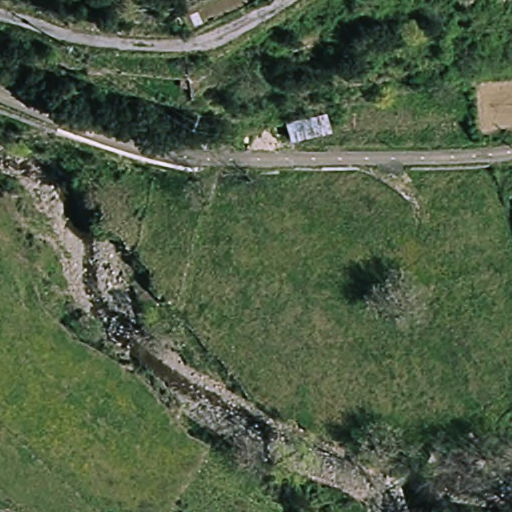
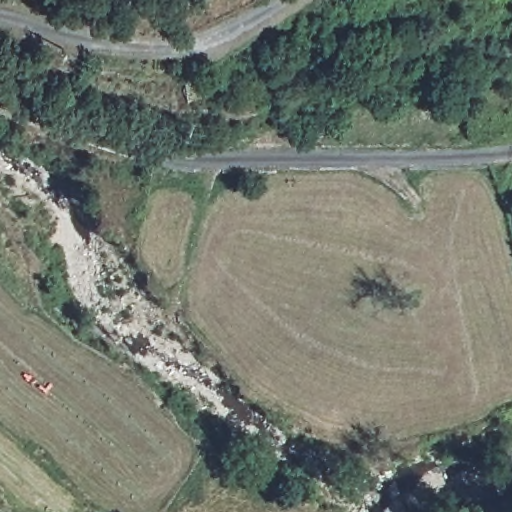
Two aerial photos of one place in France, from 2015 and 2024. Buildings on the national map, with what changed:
unchanged [(332,134),(295,143),(290,120),(329,112),(332,134)]

